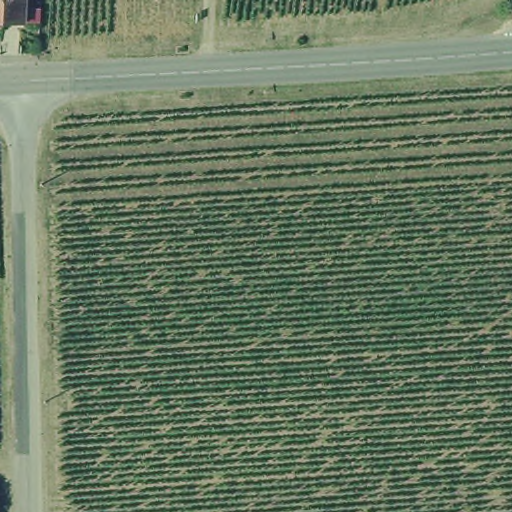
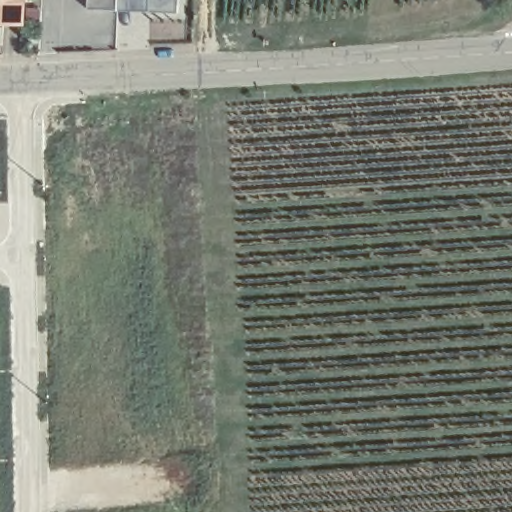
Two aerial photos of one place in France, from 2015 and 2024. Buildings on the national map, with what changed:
unchanged [(19,27),(0,27),(0,0),(20,0),(19,27)]
new [(177,11),(147,11),(116,9),(87,8),(88,0),(177,0),(177,11)]

